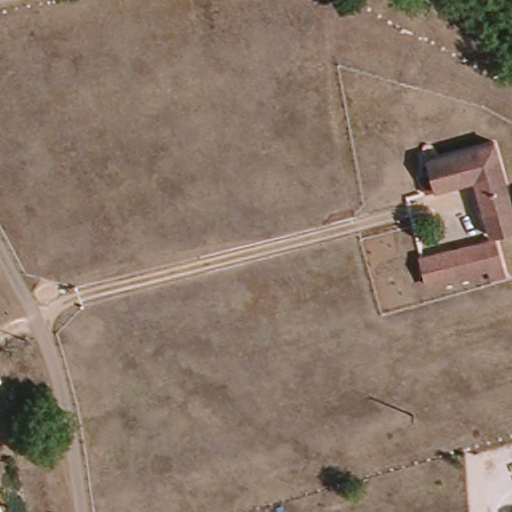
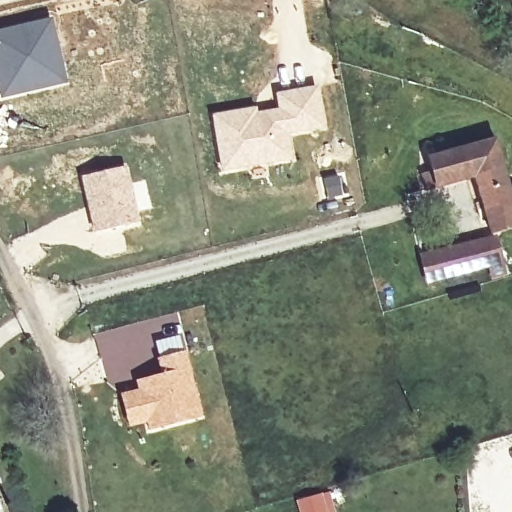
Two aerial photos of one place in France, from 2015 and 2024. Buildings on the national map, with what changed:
new [(67,83),(0,99),(0,28),(52,15),(67,83)]
new [(256,104),(257,109),(276,106),(274,91),(320,83),(328,128),(292,136),(296,160),(220,174),(209,113),(256,104)]
unchanged [(495,137),(512,201),(512,227),(491,232),(475,176),(437,187),(427,190),(422,173),(432,170),(429,156),(495,137)]
new [(127,163),(140,221),(92,231),(80,175),(127,163)]
unchanged [(492,277),(488,265),(452,275),(428,282),(422,254),(495,236),(502,261),(505,273),(492,277)]
new [(136,388),(134,379),(159,372),(154,340),(182,333),(204,414),(147,429),(144,422),(128,426),(120,392),(136,388)]
new [(329,512),(297,512),(293,500),(326,494),(329,512)]

